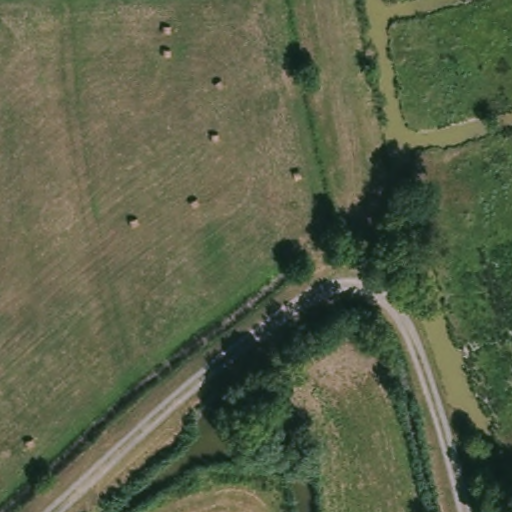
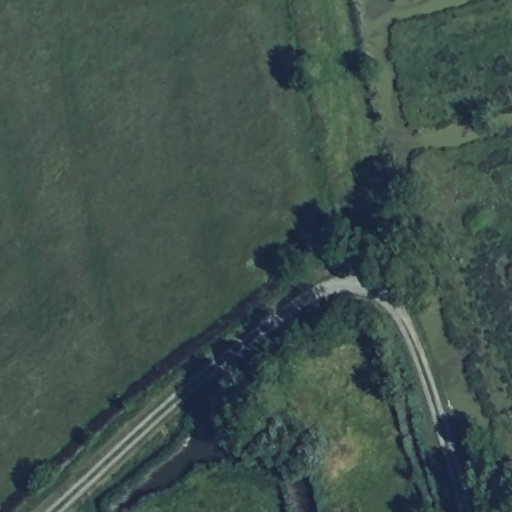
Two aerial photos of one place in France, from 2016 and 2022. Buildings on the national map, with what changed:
unchanged [(370,239),(358,185),(376,181),(387,233),(370,239)]

